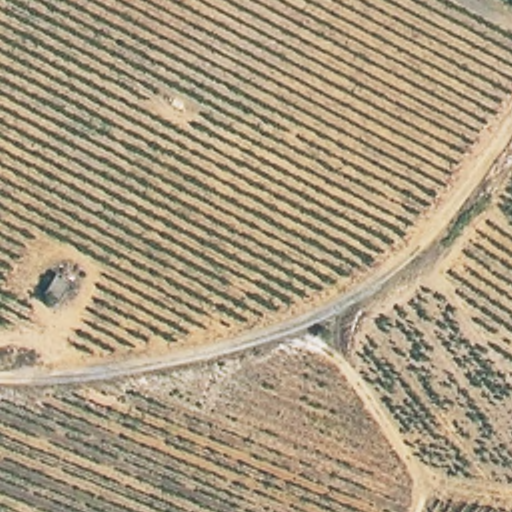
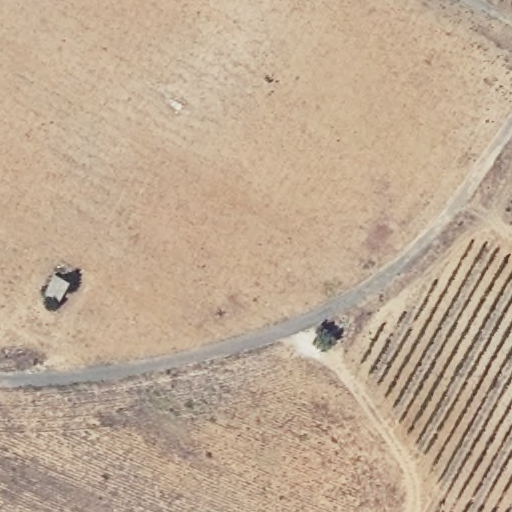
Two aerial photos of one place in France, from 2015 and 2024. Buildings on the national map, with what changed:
unchanged [(54,271),(72,283),(60,302),(43,289),(54,271)]

